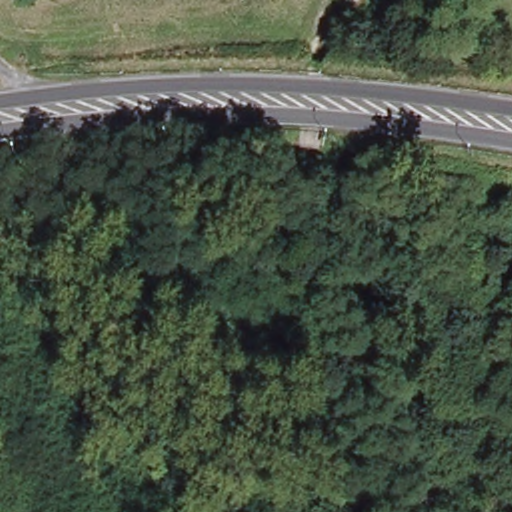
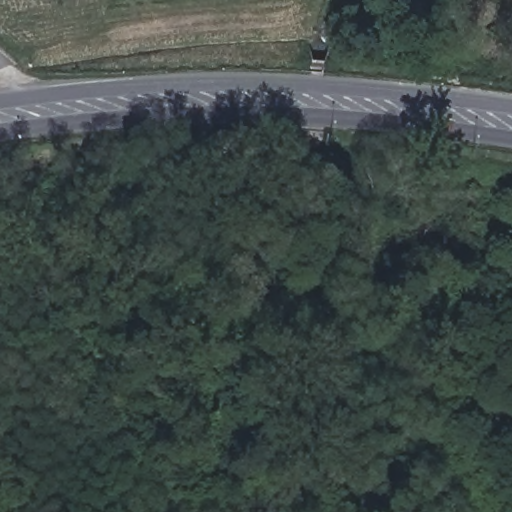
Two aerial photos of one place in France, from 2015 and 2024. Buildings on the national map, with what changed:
unchanged [(5,219),(0,199),(0,196),(17,193),(22,215),(5,219)]

